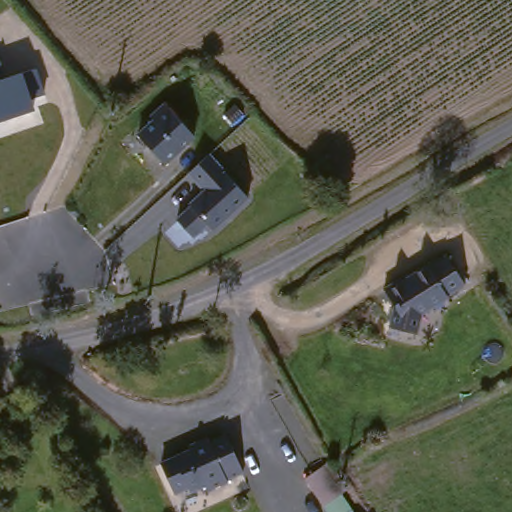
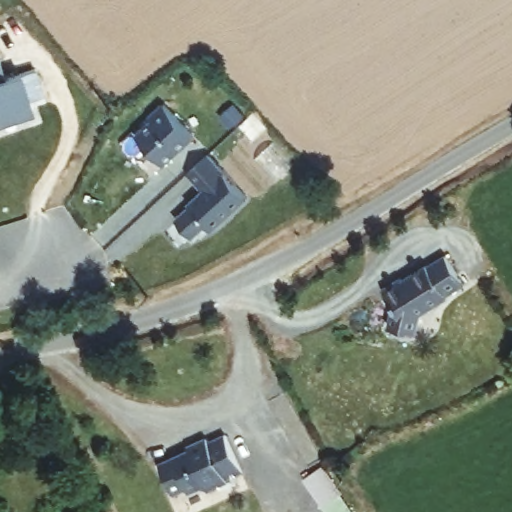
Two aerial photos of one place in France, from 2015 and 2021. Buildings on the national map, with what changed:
unchanged [(29,99),(33,111),(0,121),(0,60),(1,60),(6,78),(23,73),(36,68),(45,95),(29,99)]
unchanged [(166,164),(138,135),(154,121),(149,116),(163,104),(195,138),(166,164)]
unchanged [(212,232),(208,226),(194,238),(177,219),(190,207),(188,205),(204,191),(188,174),(210,154),(246,197),(212,232)]
unchanged [(439,298),(441,301),(413,316),(411,337),(383,331),(388,309),(378,291),(396,280),(399,282),(423,269),(441,259),(459,289),(439,298)]
unchanged [(241,476),(222,481),(223,488),(208,493),(205,489),(191,493),(188,489),(169,495),(156,461),(189,450),(188,444),(204,440),(206,445),(228,438),(241,476)]
unchanged [(346,503),(329,511),(310,481),(327,471),(346,503)]

